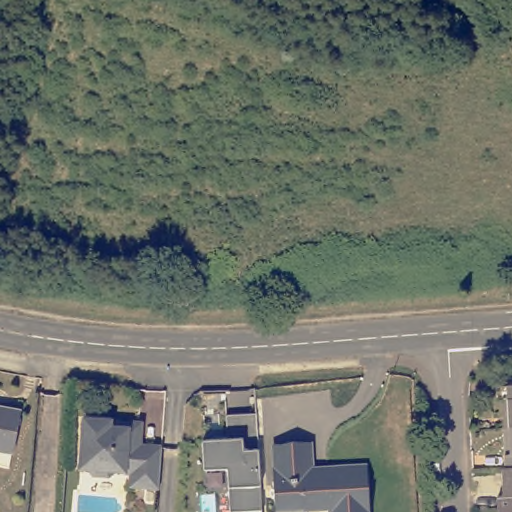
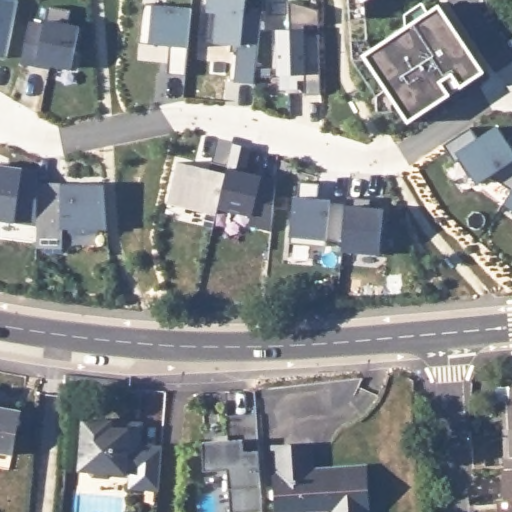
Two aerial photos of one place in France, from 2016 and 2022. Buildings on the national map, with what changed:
new [(5,0),(17,2),(5,60),(0,59),(0,0),(5,0)]
new [(246,0),(244,15),(262,17),(255,84),(235,83),(239,46),(205,43),(210,0),(246,0)]
new [(367,19),(351,20),(350,0),(368,0),(366,1),(367,19)]
new [(290,31),(289,2),(319,11),(320,26),(305,26),(305,36),(320,36),(322,96),(305,96),(305,76),(279,76),(277,31),(290,31)]
new [(143,5),(192,10),(185,77),(167,75),(169,47),(139,44),(143,5)]
new [(441,5),(476,57),(455,71),(420,19),(441,5)]
new [(28,25),(43,28),(47,8),(69,13),(66,27),(78,30),(70,70),(49,66),(49,70),(20,64),(28,25)]
new [(368,60),(354,61),(353,41),(369,40),(375,49),(420,19),(455,71),(476,57),(486,72),(410,123),(396,103),(394,105),(394,112),(378,113),(377,96),(387,90),(368,60)]
new [(498,129),(512,149),(512,191),(492,177),(479,185),(462,160),(456,164),(444,147),(471,129),(479,141),(498,129)]
new [(228,168),(234,146),(251,151),(245,175),(277,182),(271,233),(249,228),(252,218),(218,211),(228,168)]
new [(37,169),(37,181),(37,224),(0,219),(0,163),(37,169)]
new [(178,164),(210,172),(212,164),(228,168),(218,211),(217,216),(168,205),(178,164)]
new [(296,194),(299,195),(301,180),(321,182),(320,197),(332,198),(332,199),(348,201),(344,240),(329,238),(328,245),(291,241),(296,194)]
new [(37,224),(37,181),(104,182),(107,228),(63,227),(62,246),(36,246),(37,224)]
new [(348,201),(349,195),(365,197),(372,198),(371,206),(385,207),(381,253),(343,249),(344,240),(348,201)]
new [(512,210),(505,206),(512,197),(512,210)]
unchanged [(493,379),(509,378),(512,378),(512,417),(507,417),(506,391),(493,391),(493,379)]
unchanged [(0,451),(0,406),(21,410),(13,454),(0,451)]
unchanged [(144,419),(143,425),(142,441),(164,442),(160,484),(140,482),(133,474),(134,468),(116,466),(110,471),(95,470),(90,464),(82,463),(86,414),(113,416),(144,419)]
unchanged [(227,441),(226,416),(257,415),(260,450),(263,486),(263,510),(242,512),(231,512),(229,488),(228,469),(205,471),(204,443),(227,441)]
unchanged [(509,447),(507,417),(512,417),(512,459),(503,459),(503,447),(509,447)]
unchanged [(368,512),(277,512),(273,448),(311,446),(312,469),(328,469),(366,467),(368,512)]
unchanged [(496,489),(502,489),(501,459),(503,459),(512,459),(512,501),(497,501),(496,489)]
unchanged [(497,501),(512,501),(512,512),(498,512),(497,501)]

